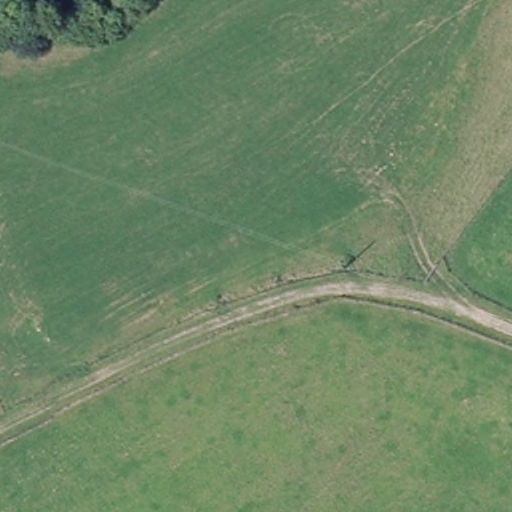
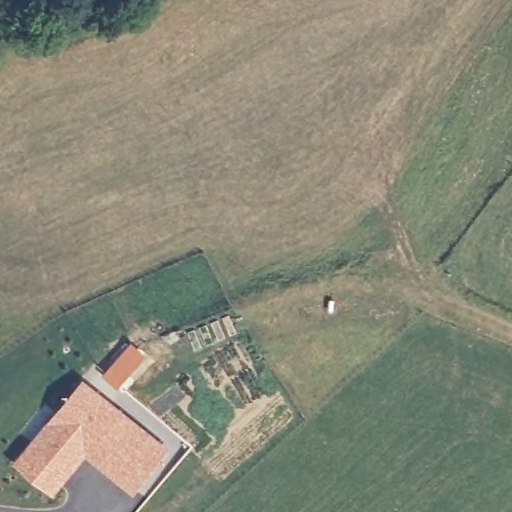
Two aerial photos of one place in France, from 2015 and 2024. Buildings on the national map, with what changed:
new [(135,492),(87,454),(55,494),(14,459),(84,375),(171,448),(135,492)]

